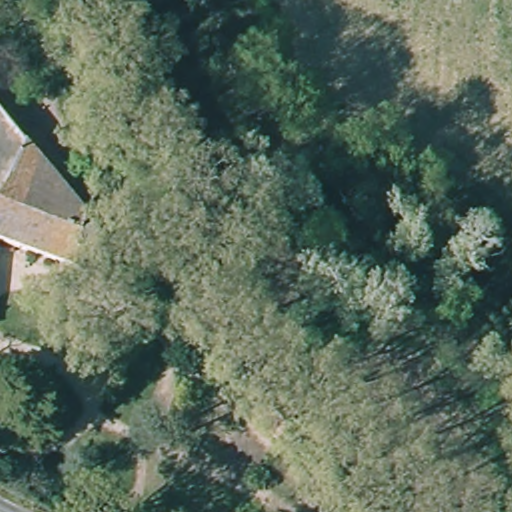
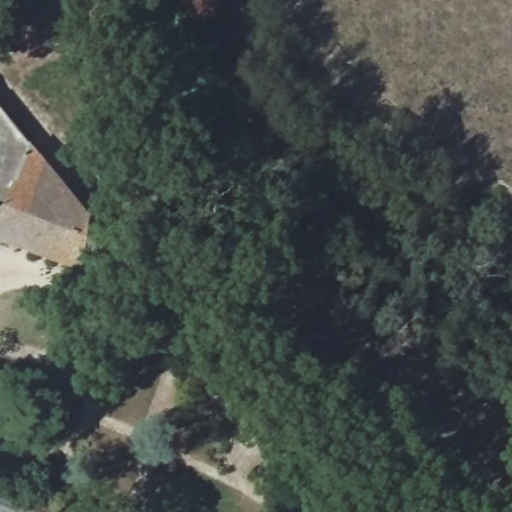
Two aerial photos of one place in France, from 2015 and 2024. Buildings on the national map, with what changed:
unchanged [(100,285),(73,275),(0,247),(0,119),(84,221),(77,254),(107,265),(100,285)]
unchanged [(269,431),(253,414),(265,402),(281,419),(269,431)]
unchanged [(328,491),(313,475),(324,464),(339,480),(328,491)]

